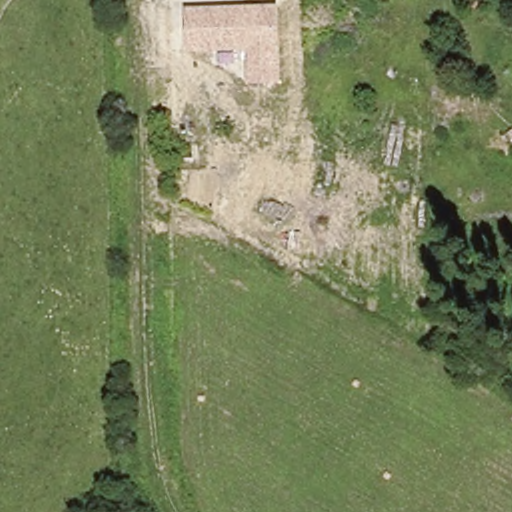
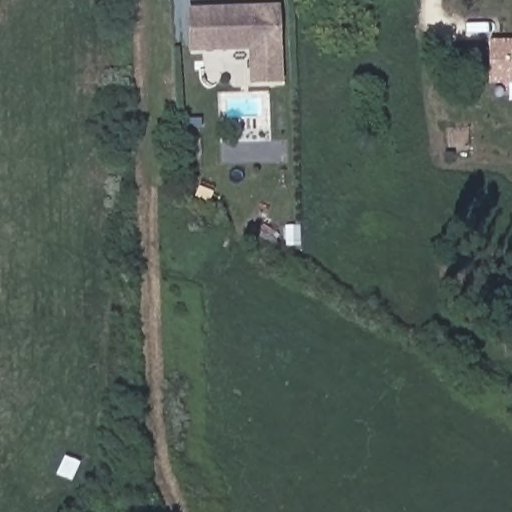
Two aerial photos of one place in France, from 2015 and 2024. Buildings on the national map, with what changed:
unchanged [(248,85),(246,50),(186,52),(185,8),(279,5),(282,83),(248,85)]
new [(490,39),(512,39),(512,85),(489,85),(490,39)]

